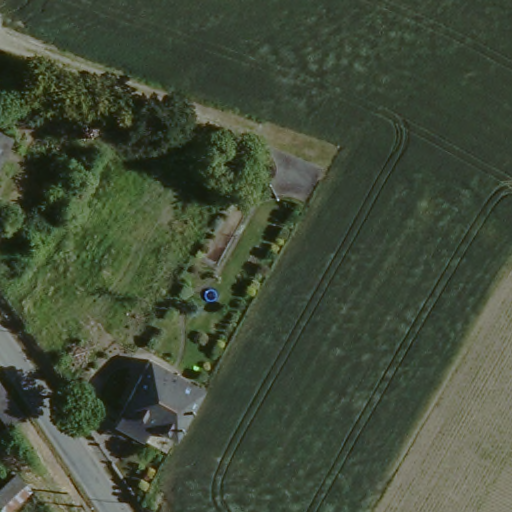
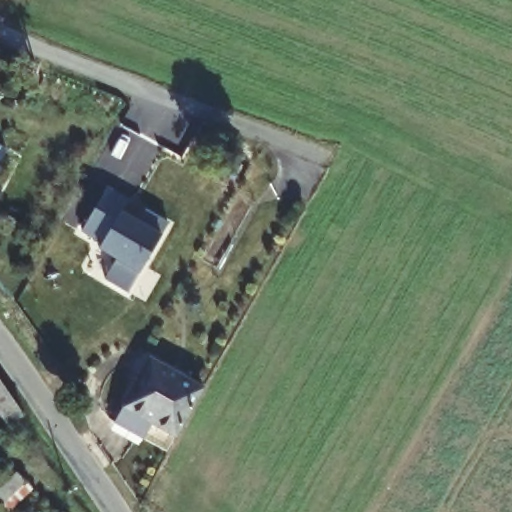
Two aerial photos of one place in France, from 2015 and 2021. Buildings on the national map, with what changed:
unchanged [(13,145),(0,170),(0,139),(0,138),(13,145)]
new [(130,200),(123,212),(131,217),(139,222),(146,209),(170,223),(131,291),(107,278),(119,258),(101,248),(104,242),(84,230),(109,187),(130,200)]
unchanged [(115,425),(151,359),(205,389),(204,391),(168,456),(115,425)]
unchanged [(0,414),(0,380),(23,413),(10,428),(0,414)]
unchanged [(0,488),(17,473),(29,488),(5,512),(0,505),(0,488)]

